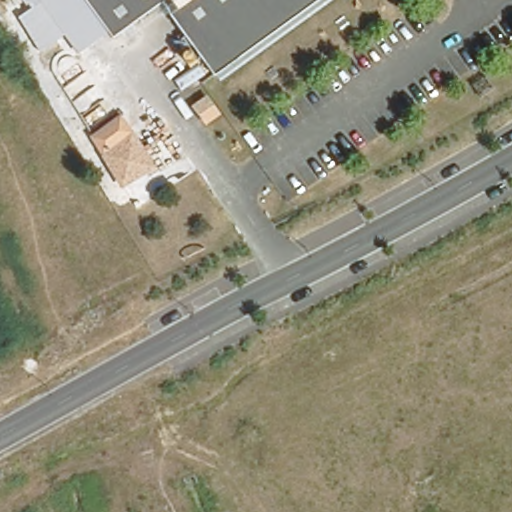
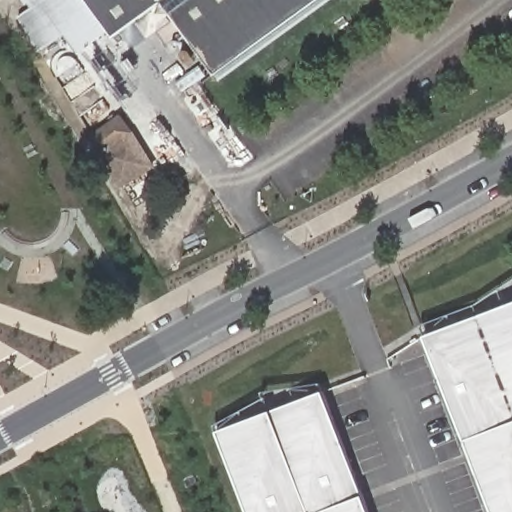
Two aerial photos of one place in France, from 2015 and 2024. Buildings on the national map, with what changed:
unchanged [(18,16),(32,7),(29,2),(26,4),(23,0),(34,0),(62,37),(41,51),(18,16)]
unchanged [(75,54),(34,0),(84,0),(107,32),(75,54)]
unchanged [(171,16),(165,7),(115,44),(107,33),(84,0),(330,0),(215,80),(171,16)]
unchanged [(155,167),(122,187),(102,155),(90,136),(121,114),(134,131),(155,167)]
new [(425,335),(512,302),(512,512),(492,512),(425,335)]
new [(217,431),(325,390),(370,512),(248,512),(217,431)]

